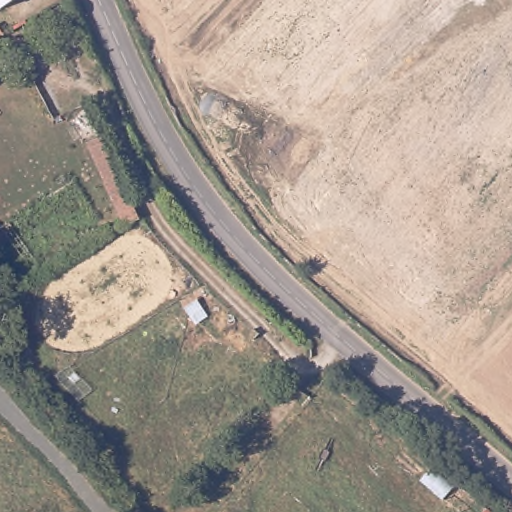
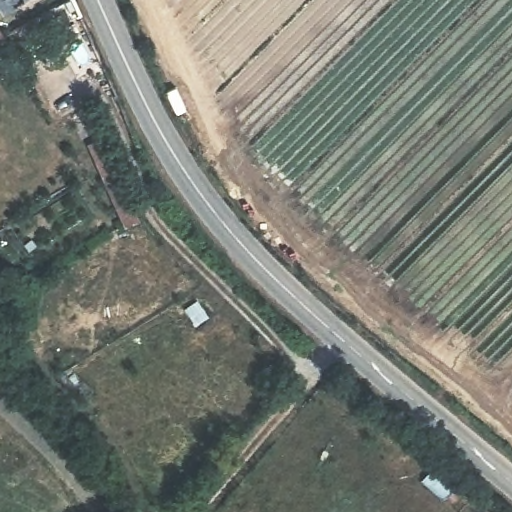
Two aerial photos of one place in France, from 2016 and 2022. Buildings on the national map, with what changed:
unchanged [(0,8),(0,0),(17,0),(2,11),(0,8)]
unchanged [(0,48),(0,34),(5,31),(13,41),(0,48)]

